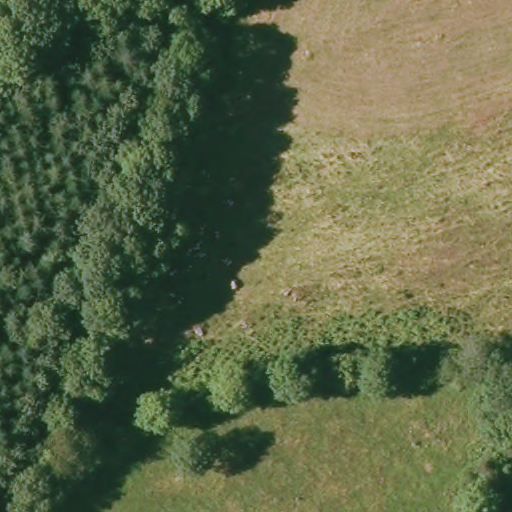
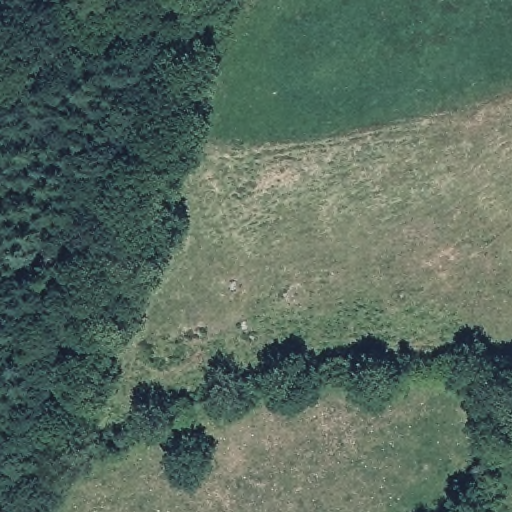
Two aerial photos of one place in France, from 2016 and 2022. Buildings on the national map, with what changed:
[]

